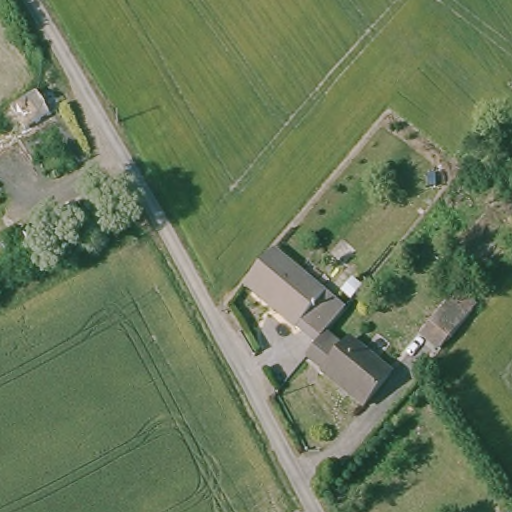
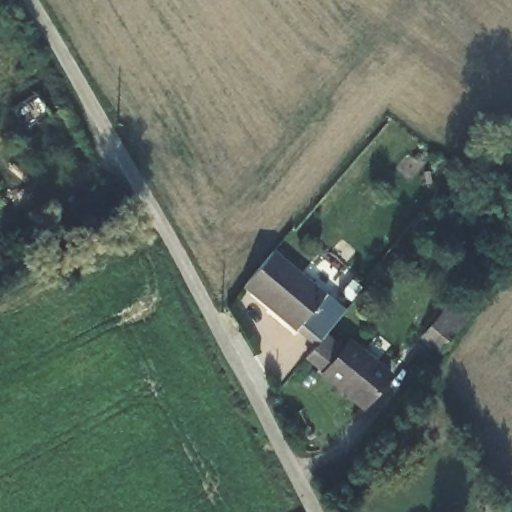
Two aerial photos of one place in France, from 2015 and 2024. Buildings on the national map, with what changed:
unchanged [(61,113),(0,151),(0,120),(48,90),(61,113)]
unchanged [(324,296),(343,311),(334,321),(324,333),(314,344),(296,329),(244,285),(272,252),(324,296)]
unchanged [(454,298),(458,293),(476,308),(471,313),(439,352),(421,337),(454,298)]
unchanged [(389,375),(361,407),(321,373),(323,371),(304,356),(314,344),(324,333),(341,349),(349,340),(389,375)]

